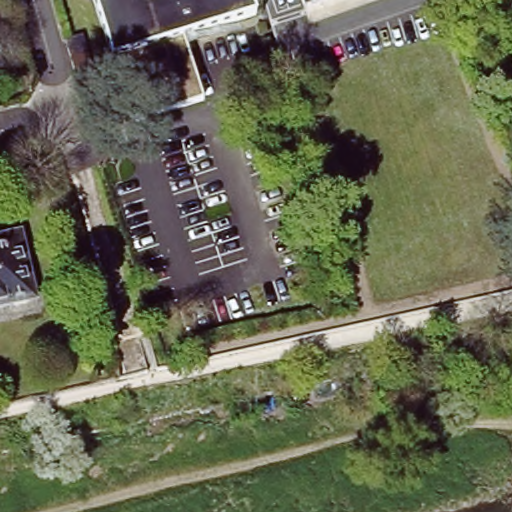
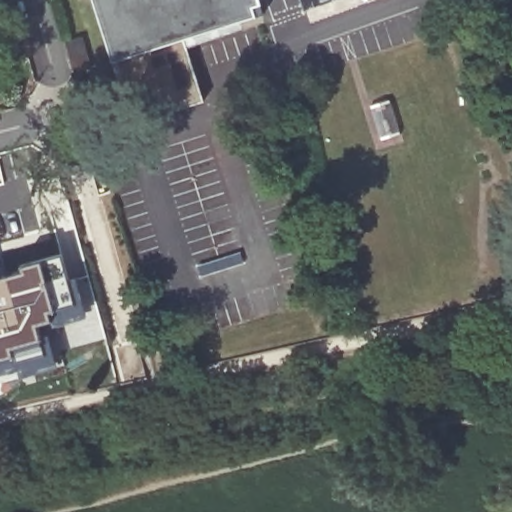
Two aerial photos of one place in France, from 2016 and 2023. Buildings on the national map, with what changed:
unchanged [(182,89),(126,102),(95,0),(158,0),(182,89)]
unchanged [(264,12),(186,37),(204,98),(132,120),(126,102),(182,89),(158,0),(260,0),(264,12)]
unchanged [(301,7),(298,0),(323,0),(301,7)]
unchanged [(67,43),(83,39),(92,71),(77,76),(67,43)]
new [(2,181),(0,181),(0,176),(2,181)]
demolished [(19,235),(34,298),(31,299),(25,307),(14,310),(7,304),(0,306),(0,239),(19,235)]
new [(4,265),(6,274),(22,269),(20,263),(41,259),(63,255),(70,277),(77,276),(90,275),(105,338),(57,350),(58,367),(18,378),(16,372),(0,377),(0,266),(4,265)]

